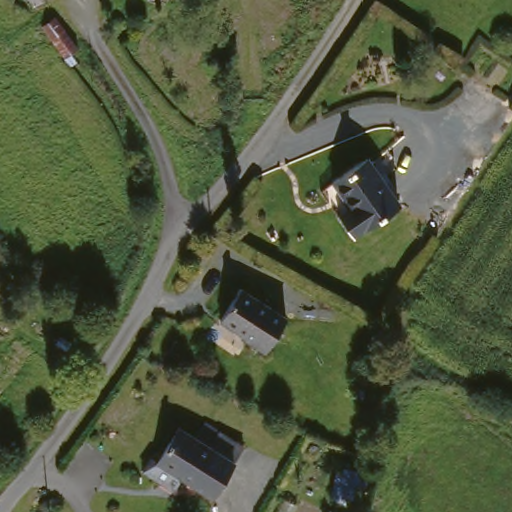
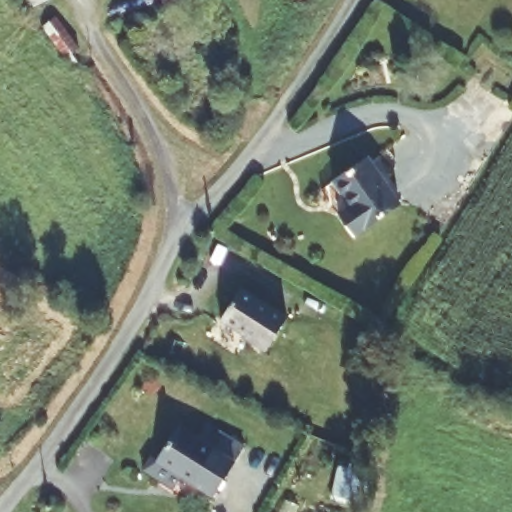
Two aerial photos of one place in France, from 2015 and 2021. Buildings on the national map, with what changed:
unchanged [(79,49),(67,58),(45,25),(59,18),(79,49)]
unchanged [(378,157),(404,202),(359,231),(332,185),(378,157)]
unchanged [(228,318),(249,282),(295,311),(272,346),(228,318)]
unchanged [(145,465),(153,451),(163,456),(184,423),(240,455),(223,491),(189,472),(180,487),(145,465)]

